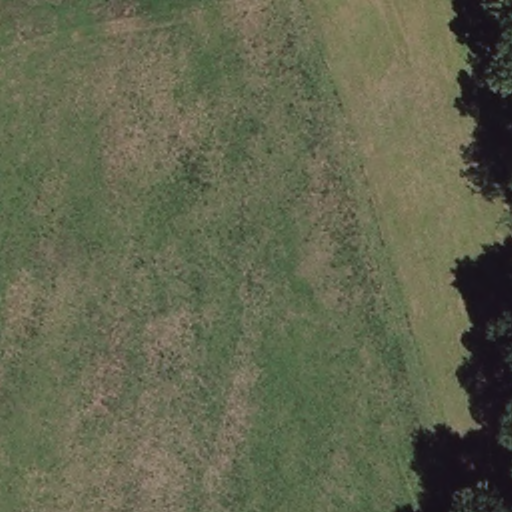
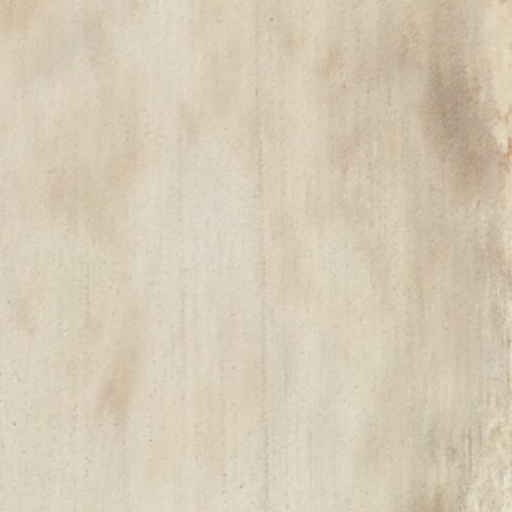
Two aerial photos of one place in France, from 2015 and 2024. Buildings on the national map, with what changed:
[]

